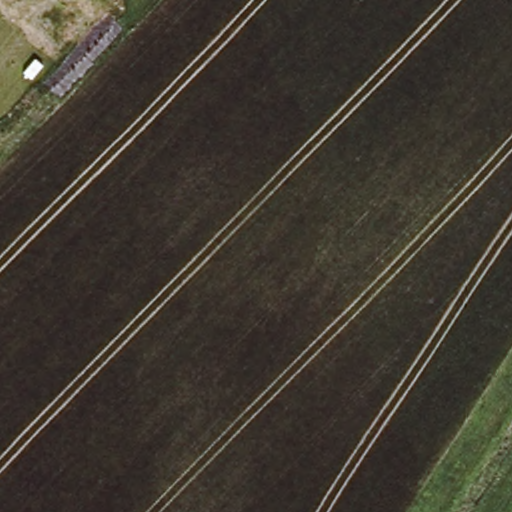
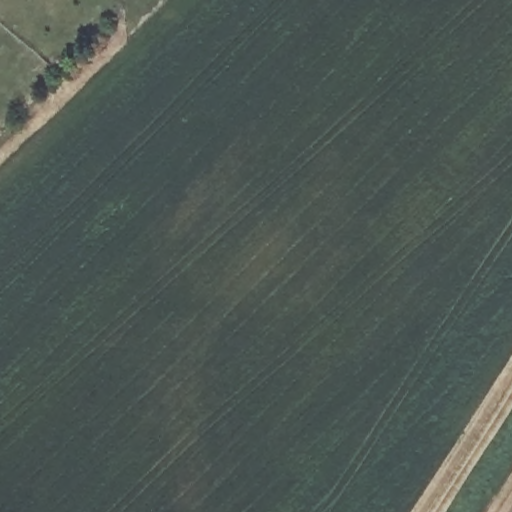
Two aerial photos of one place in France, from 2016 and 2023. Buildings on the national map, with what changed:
[]

